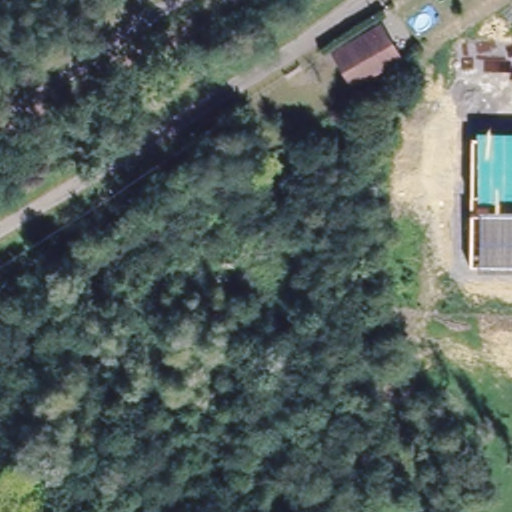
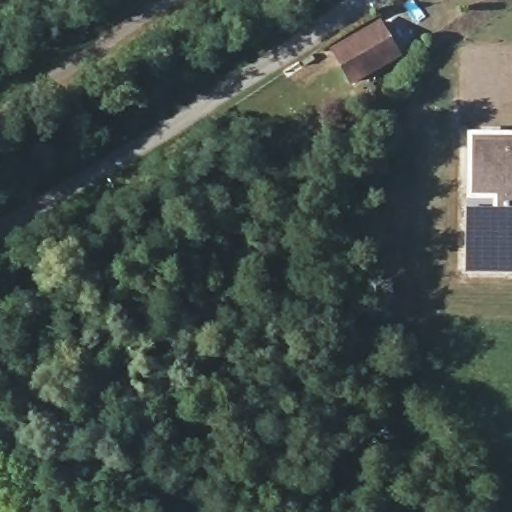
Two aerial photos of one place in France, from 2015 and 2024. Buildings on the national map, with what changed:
unchanged [(399,52),(353,76),(335,45),(382,20),(399,52)]
unchanged [(512,268),(477,267),(477,265),(470,264),(471,136),(476,136),(476,130),(512,130),(512,268)]

